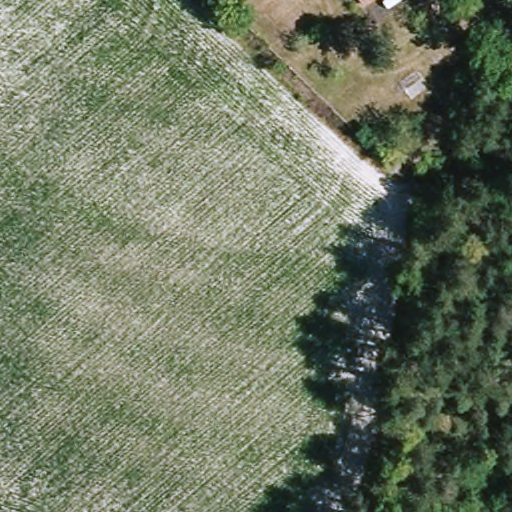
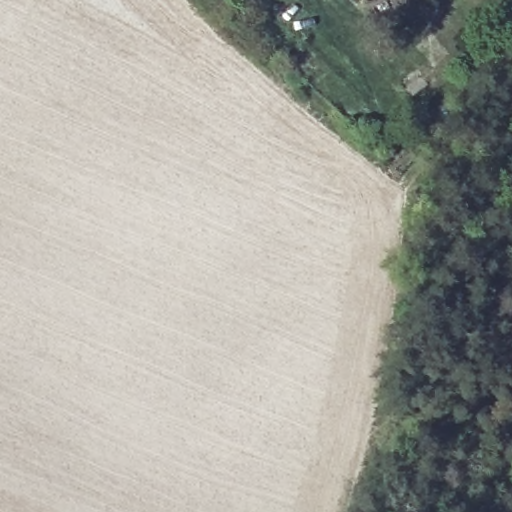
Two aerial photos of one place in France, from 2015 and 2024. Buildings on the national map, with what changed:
unchanged [(413,78),(420,91),(414,95),(405,83),(413,78)]

